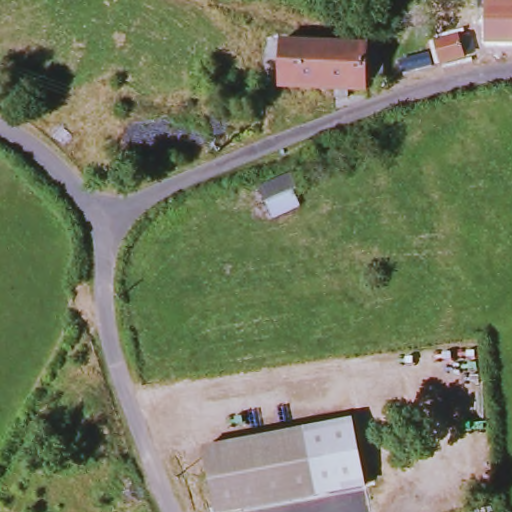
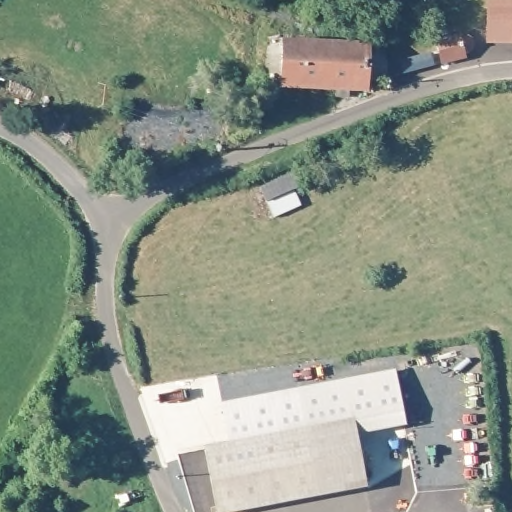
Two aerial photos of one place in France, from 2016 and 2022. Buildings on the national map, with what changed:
unchanged [(487,1),(512,1),(512,43),(487,44),(487,1)]
unchanged [(438,58),(432,38),(457,32),(462,53),(438,58)]
unchanged [(390,79),(372,79),(372,91),(286,90),(286,44),(390,47),(390,79)]
unchanged [(294,178),(300,196),(265,210),(258,192),(294,178)]
unchanged [(294,200),(300,215),(271,226),(265,211),(294,200)]
new [(359,420),(227,444),(220,404),(395,369),(405,423),(361,432),(359,420)]
unchanged [(359,420),(371,490),(231,512),(218,512),(204,448),(359,420)]

